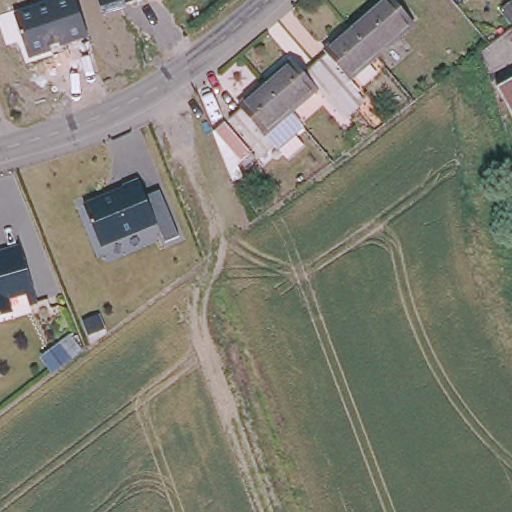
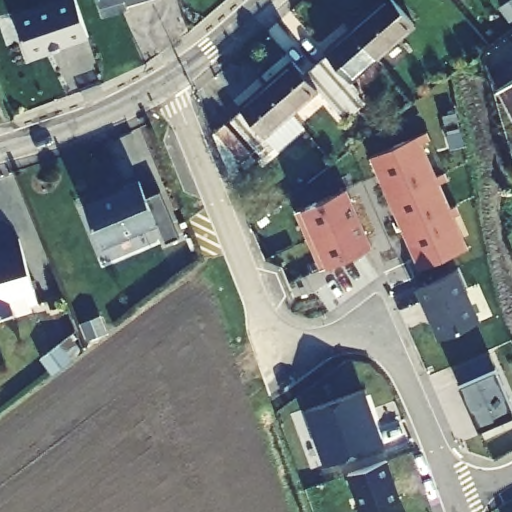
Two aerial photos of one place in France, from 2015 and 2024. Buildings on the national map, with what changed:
unchanged [(77,0),(88,40),(31,57),(16,10),(50,0),(77,0)]
unchanged [(127,10),(102,16),(98,0),(142,0),(126,4),(127,10)]
unchanged [(396,0),(401,0),(426,29),(386,59),(359,28),(396,0)]
unchanged [(359,28),(386,59),(342,94),(312,63),(359,28)]
unchanged [(326,107),(315,94),(291,114),(266,85),(289,66),(296,75),(312,63),(342,94),(326,107)]
unchanged [(499,91),(512,84),(512,116),(499,91)]
unchanged [(291,114),(304,128),(302,130),(277,152),(274,149),(261,160),(226,120),(266,85),(291,114)]
demolished [(217,140),(207,115),(240,156),(227,166),(217,140)]
new [(261,160),(249,170),(242,162),(237,166),(244,176),(234,184),(212,131),(226,120),(261,160)]
new [(437,173),(442,170),(445,178),(440,180),(451,203),(455,202),(460,210),(455,212),(469,245),(421,266),(371,154),(424,130),(427,138),(422,140),(437,173)]
unchanged [(87,212),(85,207),(95,203),(125,191),(125,189),(141,182),(157,225),(101,248),(87,212)]
new [(348,188),(374,246),(324,269),(298,210),(348,188)]
unchanged [(39,302),(31,305),(29,299),(31,299),(29,293),(9,299),(14,314),(0,318),(0,255),(22,247),(29,271),(39,302)]
new [(491,268),(496,298),(507,324),(452,342),(426,286),(491,268)]
new [(496,365),(512,402),(512,413),(480,427),(472,410),(474,409),(469,396),(466,397),(459,382),(496,365)]
new [(385,444),(328,464),(307,409),(365,389),(385,444)]
new [(401,497),(362,511),(348,471),(386,459),(401,497)]

